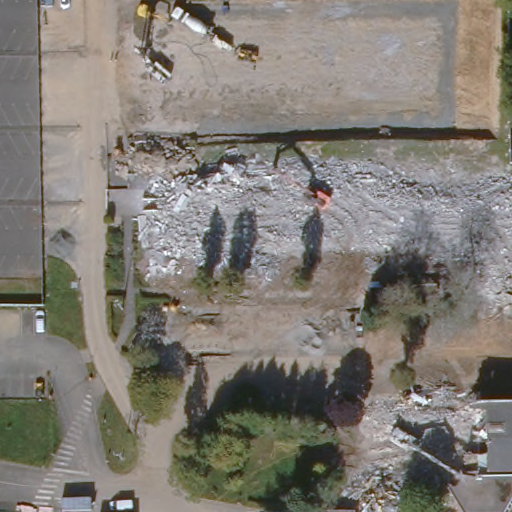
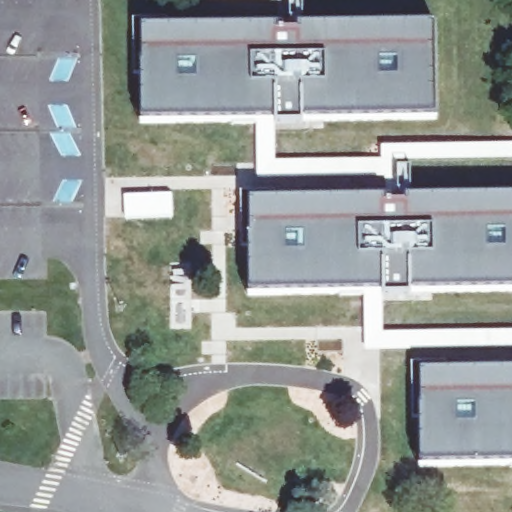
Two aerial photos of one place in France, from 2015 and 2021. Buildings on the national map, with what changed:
new [(435,115),(140,116),(140,25),(430,20),(435,115)]
demolished [(488,251),(158,253),(155,191),(187,187),(190,180),(192,178),(219,176),(222,181),(222,189),(512,182),(512,280),(490,280),(488,251)]
new [(172,218),(124,221),(124,195),(170,192),(172,218)]
new [(246,197),(512,192),(512,285),(248,290),(246,197)]
new [(512,367),(512,457),(420,457),(417,368),(512,367)]
demolished [(464,512),(448,489),(453,481),(387,482),(385,405),(512,403),(512,507),(509,512),(464,512)]

